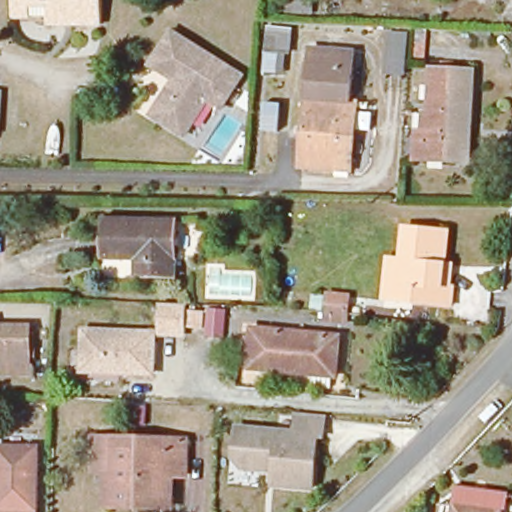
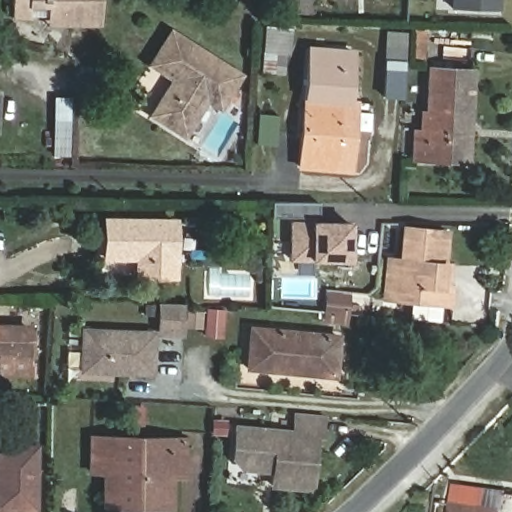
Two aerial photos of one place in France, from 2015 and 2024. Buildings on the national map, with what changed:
unchanged [(97,30),(70,30),(70,22),(8,22),(8,0),(97,0),(97,30)]
new [(496,10),(451,7),(451,0),(497,0),(496,10)]
unchanged [(208,98),(190,127),(180,130),(154,115),(175,79),(151,64),(171,31),(241,73),(227,96),(221,106),(208,98)]
unchanged [(267,41),(293,44),(291,65),(265,62),(267,41)]
unchanged [(385,75),(386,46),(407,46),(405,75),(385,75)]
unchanged [(355,108),(345,107),(338,175),(305,172),(312,104),(315,54),(358,57),(355,108)]
unchanged [(413,160),(415,130),(421,131),(422,112),(427,112),(428,104),(430,68),(474,70),(473,106),(473,117),(468,117),(466,162),(413,160)]
unchanged [(3,139),(0,139),(0,91),(6,91),(3,139)]
unchanged [(264,102),(281,104),(280,132),(262,130),(264,102)]
unchanged [(106,220),(176,221),(176,276),(137,276),(137,259),(105,258),(106,220)]
new [(289,222),(347,222),(346,259),(288,258),(289,222)]
unchanged [(399,227),(444,232),(439,287),(448,287),(447,305),(391,300),(399,227)]
unchanged [(328,297),(348,299),(346,316),(328,315),(326,315),(328,297)]
unchanged [(159,303),(187,303),(186,310),(204,311),(204,328),(186,328),(186,339),(156,338),(156,377),(80,375),(82,327),(157,329),(159,303)]
unchanged [(207,307),(229,308),(229,340),(207,340),(207,307)]
unchanged [(32,328),(33,380),(1,380),(0,366),(0,328),(32,328)]
unchanged [(252,328),(340,336),(336,377),(248,368),(252,328)]
unchanged [(323,418),(321,440),(315,439),(310,491),(270,486),(272,467),(262,466),(256,470),(240,468),(232,457),(236,428),(295,435),(297,415),(323,418)]
unchanged [(111,477),(91,476),(92,443),(186,445),(186,465),(172,466),(172,505),(129,505),(129,512),(111,511),(111,477)]
unchanged [(36,512),(0,512),(0,447),(38,447),(36,512)]
unchanged [(452,512),(454,497),(500,502),(499,512),(452,512)]

